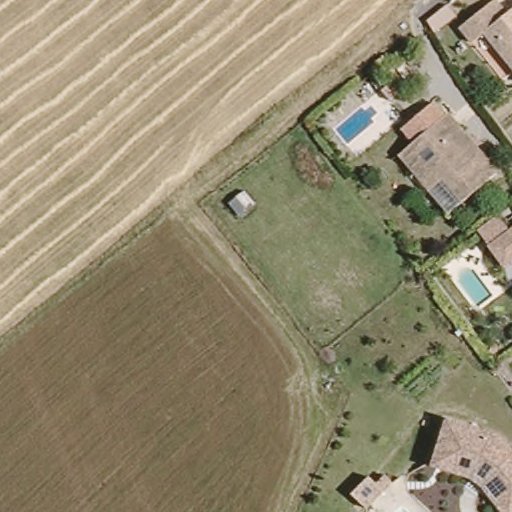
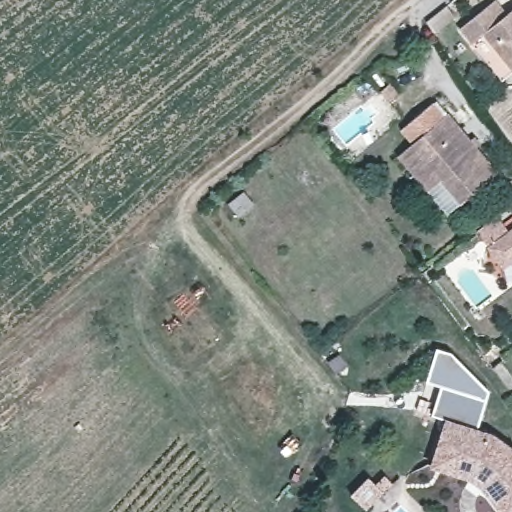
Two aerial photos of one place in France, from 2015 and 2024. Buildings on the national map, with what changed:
unchanged [(479,36),(468,46),(456,30),(490,3),(501,17),(512,8),(512,76),(510,74),(479,36)]
unchanged [(394,160),(409,146),(397,133),(428,107),(438,120),(442,116),(492,176),(455,209),(439,189),(426,199),(416,186),(394,160)]
unchanged [(482,250),(512,227),(512,259),(497,270),(482,250)]
new [(444,419),(432,416),(442,387),(427,381),(437,348),(452,352),(489,391),(475,430),(444,419)]
unchanged [(512,449),(512,512),(497,512),(477,489),(427,472),(444,419),(504,440),(512,449)]

